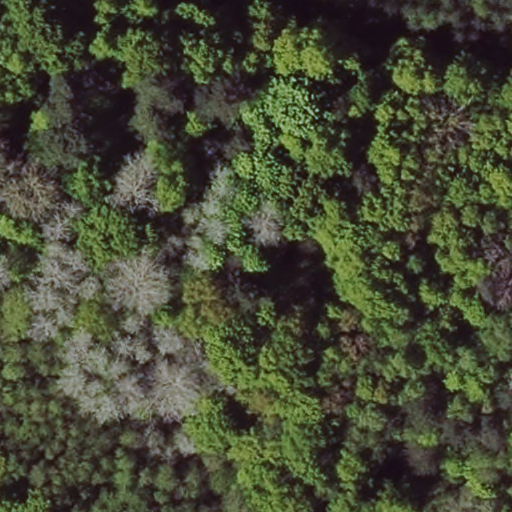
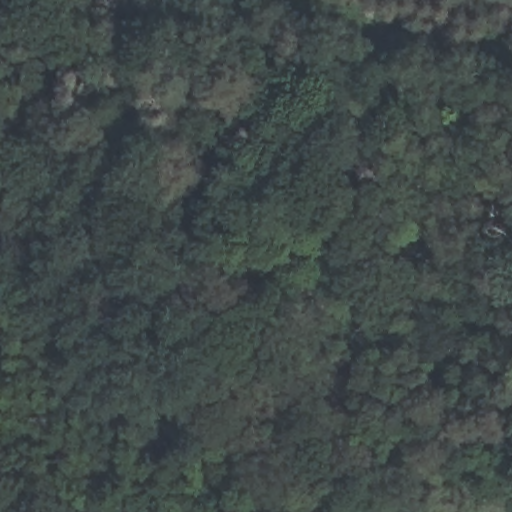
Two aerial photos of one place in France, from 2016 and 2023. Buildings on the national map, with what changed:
[]

